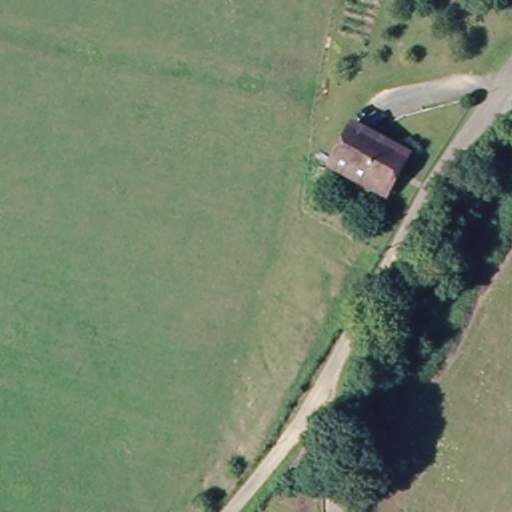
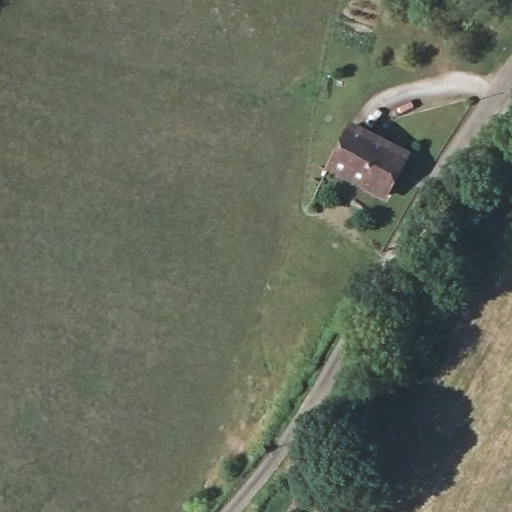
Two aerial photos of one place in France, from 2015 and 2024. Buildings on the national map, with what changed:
unchanged [(407,156),(384,203),(331,172),(357,126),(407,156)]

